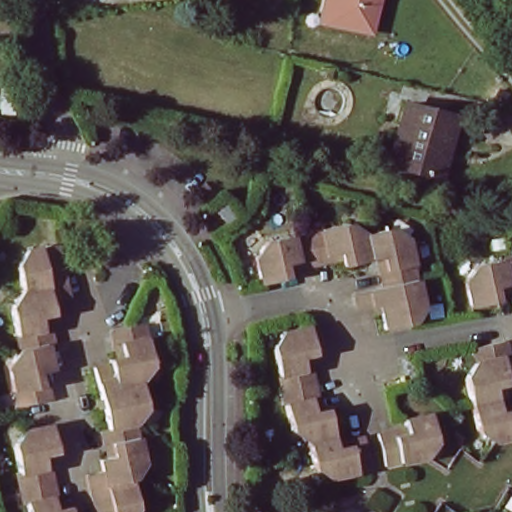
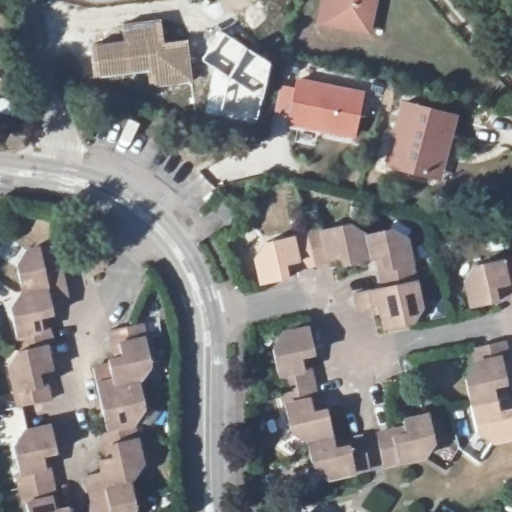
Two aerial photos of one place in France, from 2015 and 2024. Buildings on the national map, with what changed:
unchanged [(373,34),(317,23),(321,0),(380,0),(373,34)]
new [(121,38),(120,26),(160,19),(165,42),(187,38),(192,83),(147,88),(145,73),(93,79),(88,43),(121,38)]
new [(213,67),(201,58),(218,30),(270,62),(256,122),(220,115),(203,112),(213,67)]
new [(280,85),(295,86),(297,77),(366,90),(355,138),(287,124),(289,112),(276,111),(280,85)]
unchanged [(450,117),(435,179),(385,168),(398,105),(450,117)]
unchanged [(213,204),(223,198),(223,199),(237,220),(228,226),(213,204)]
unchanged [(308,234),(347,226),(365,236),(390,230),(406,243),(414,281),(383,288),(380,274),(387,273),(384,259),(343,268),(340,253),(327,257),(328,262),(315,265),(308,234)]
unchanged [(315,265),(300,268),(298,262),(286,265),(289,278),(264,284),(258,260),(270,242),(308,234),(315,265)]
unchanged [(15,268),(25,250),(52,245),(65,298),(50,301),(46,287),(21,292),(15,268)]
unchanged [(512,255),(512,261),(511,256),(512,255)]
unchanged [(503,284),(490,287),(492,301),(467,306),(461,281),(473,264),(511,256),(512,261),(512,288),(505,290),(503,284)]
unchanged [(414,281),(420,308),(409,323),(384,329),(378,303),(357,308),(354,295),(383,288),(414,281)]
unchanged [(52,311),(37,315),(40,328),(46,327),(50,341),(45,342),(19,349),(10,310),(21,292),(46,287),(50,301),(52,311)]
unchanged [(114,362),(130,359),(126,346),(120,347),(116,333),(147,326),(156,364),(145,383),(120,388),(115,366),(114,362)]
unchanged [(278,389),(270,349),(280,332),(305,327),(311,352),(297,355),(300,368),(306,367),(310,382),(278,389)]
unchanged [(464,380),(475,360),(472,347),(503,341),(506,356),(500,358),(505,382),(492,385),(495,398),(469,404),(464,380)]
unchanged [(45,342),(50,368),(36,371),(39,385),(45,384),(48,397),(18,404),(9,368),(19,349),(45,342)]
unchanged [(150,409),(140,424),(115,429),(101,370),(115,366),(120,388),(145,383),(150,409)]
unchanged [(303,439),(287,427),(278,389),(310,382),(312,396),(305,397),(310,411),(323,408),(328,434),(303,439)]
unchanged [(511,410),(510,404),(512,404),(512,437),(499,440),(492,441),(475,430),(469,404),(495,398),(497,413),(511,410)]
unchanged [(423,461),(421,461),(385,469),(379,438),(395,435),(396,440),(410,437),(406,424),(432,418),(437,444),(425,462),(423,461)]
unchanged [(149,462),(138,480),(113,485),(110,470),(108,461),(123,457),(120,444),(113,445),(110,431),(115,429),(140,424),(149,462)]
unchanged [(18,474),(20,473),(15,449),(25,432),(51,427),(58,451),(42,455),(45,468),(50,468),(52,481),(21,489),(18,474)]
unchanged [(331,448),(345,445),(344,440),(360,437),(366,468),(358,470),(328,476),(309,465),(303,439),(328,434),(331,448)]
unchanged [(110,470),(113,485),(138,480),(144,505),(141,512),(104,512),(95,474),(110,470)]
unchanged [(55,496),(52,497),(55,510),(70,507),(70,512),(29,512),(26,503),(23,503),(21,489),(52,481),(55,496)]

